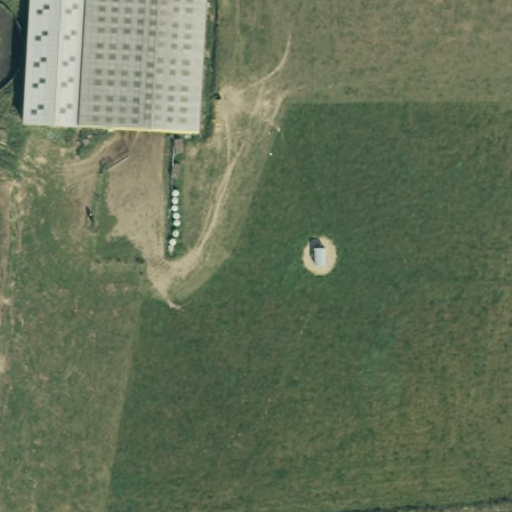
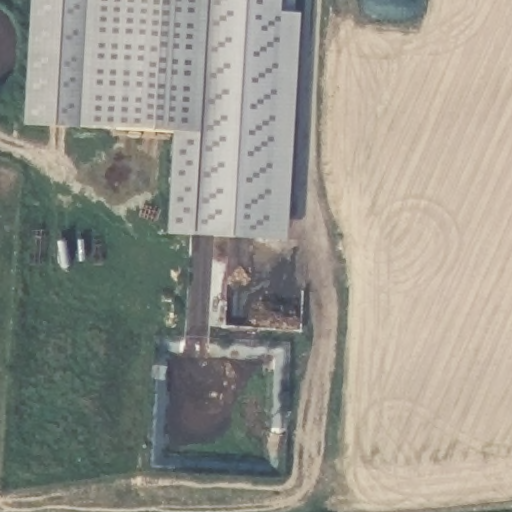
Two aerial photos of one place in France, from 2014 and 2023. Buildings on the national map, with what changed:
unchanged [(198,134),(22,125),(29,0),(207,0),(198,134)]
new [(279,14),(299,13),(284,240),(166,234),(174,132),(198,134),(207,0),(280,0),(279,14)]

